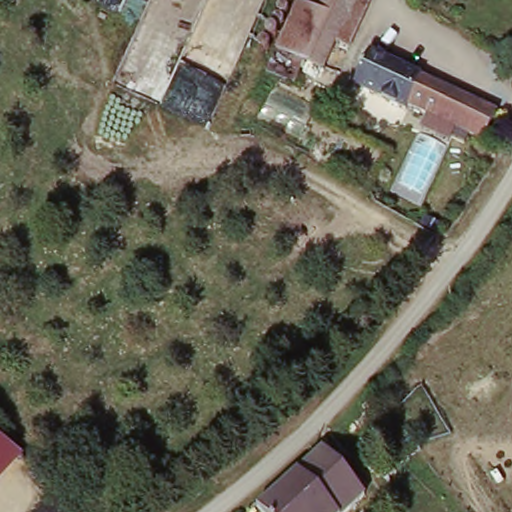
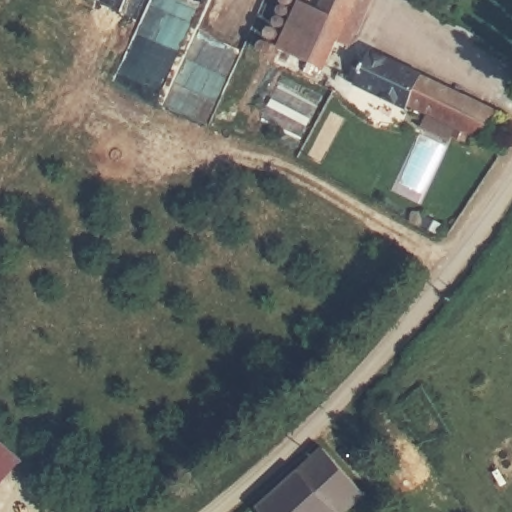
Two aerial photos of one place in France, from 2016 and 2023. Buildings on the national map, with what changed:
unchanged [(301,4),(322,13),(327,0),(374,0),(354,52),(339,46),(326,73),(281,54),(301,4)]
unchanged [(367,55),(504,113),(491,144),(457,130),(451,142),(419,131),(425,117),(355,86),(367,55)]
unchanged [(26,456),(0,488),(0,434),(26,456)]
unchanged [(382,468),(366,484),(375,494),(355,512),(272,512),(267,506),(268,503),(332,447),(337,453),(353,438),(382,468)]

